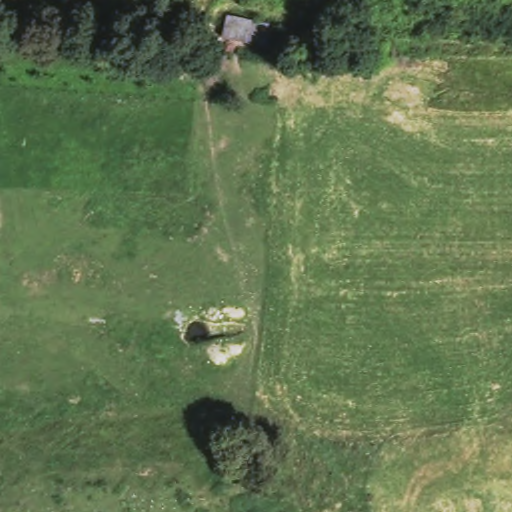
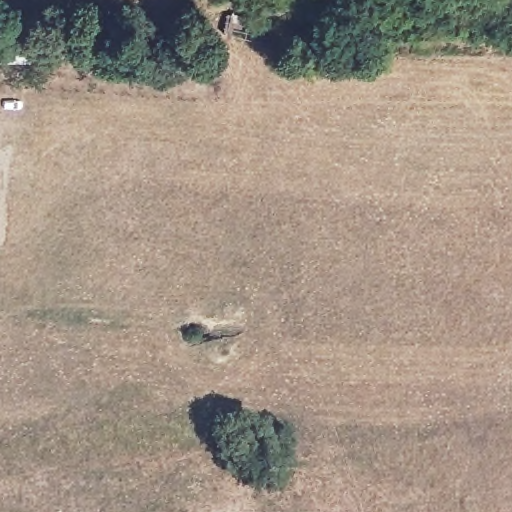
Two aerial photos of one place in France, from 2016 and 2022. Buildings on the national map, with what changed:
unchanged [(272,28),(266,51),(220,39),(224,19),(272,28)]

